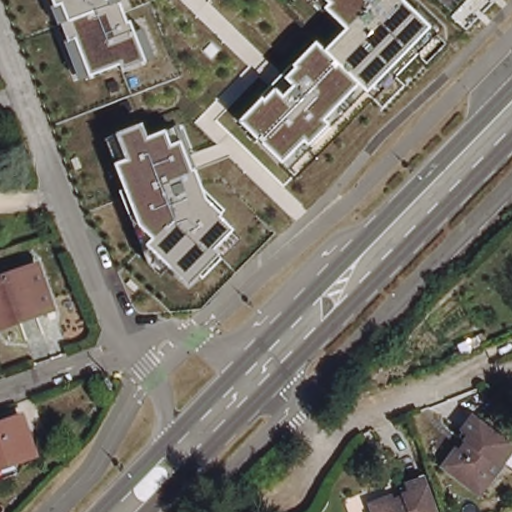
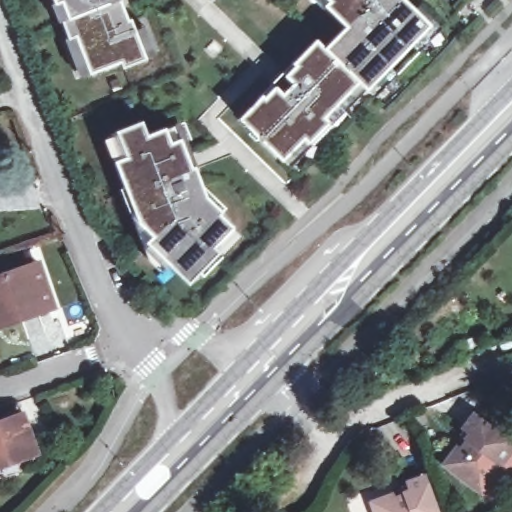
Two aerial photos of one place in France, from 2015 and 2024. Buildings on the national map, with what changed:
unchanged [(120,4),(126,24),(130,21),(134,33),(143,29),(152,57),(122,70),(120,65),(79,80),(64,43),(67,41),(60,25),(58,26),(51,8),(53,6),(51,0),(126,0),(127,1),(120,4)]
unchanged [(368,89),(329,50),(348,29),(320,0),(419,0),(422,3),(418,6),(442,29),(377,97),(368,89)]
unchanged [(238,121),(315,41),(326,53),(329,50),(368,89),(289,170),(238,121)]
unchanged [(192,283),(150,246),(155,239),(142,227),(118,164),(130,160),(119,133),(142,126),(148,140),(166,133),(172,146),(180,143),(192,172),(195,171),(205,199),(220,214),(218,218),(233,232),(214,250),(218,255),(192,283)]
unchanged [(33,259),(50,305),(0,321),(0,271),(33,259)]
unchanged [(0,471),(0,425),(22,417),(33,452),(36,458),(0,471)]
unchanged [(489,480),(481,491),(447,465),(459,448),(464,451),(470,444),(465,440),(459,435),(463,430),(474,417),(512,446),(512,450),(502,463),(507,466),(495,484),(489,480)]
unchanged [(370,509),(388,501),(390,508),(400,504),(397,498),(395,490),(400,488),(418,482),(430,512),(371,512),(370,509)]

